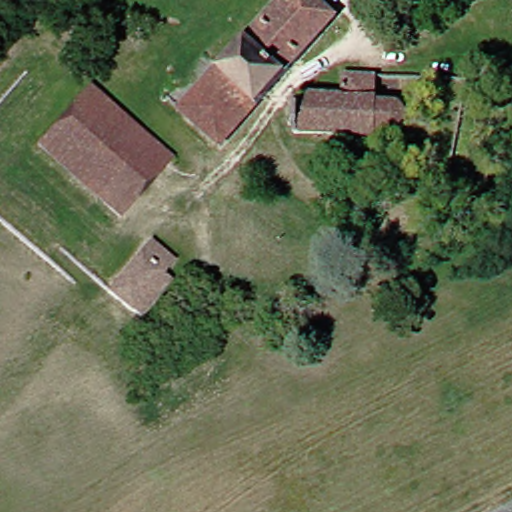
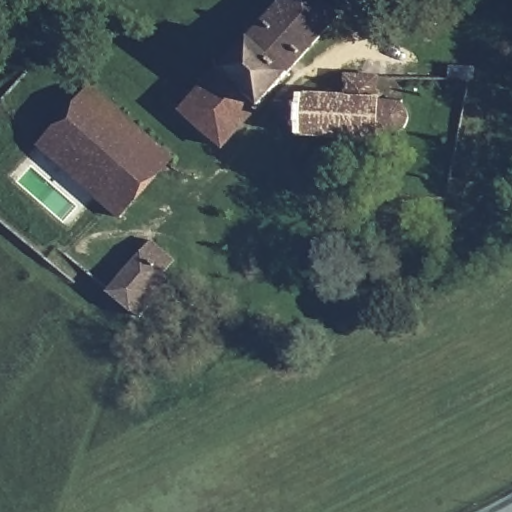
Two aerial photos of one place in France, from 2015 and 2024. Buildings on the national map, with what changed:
unchanged [(215,69),(279,0),(314,0),(333,18),(217,146),(173,108),(210,65),(215,69)]
unchanged [(377,98),(378,104),(394,105),(398,108),(402,111),(405,116),(405,121),(404,126),(402,130),(397,134),(392,136),(389,136),(375,135),(374,143),(290,139),(291,130),(285,130),(285,122),(292,122),(292,107),(283,107),(292,95),(338,96),(341,76),(345,74),(375,76),(372,98),(377,98)]
unchanged [(95,201),(35,154),(85,92),(132,129),(152,145),(171,161),(117,219),(122,223),(111,235),(84,214),(95,201)]
unchanged [(134,319),(126,312),(102,289),(148,243),(169,264),(162,273),(171,281),(134,319)]

